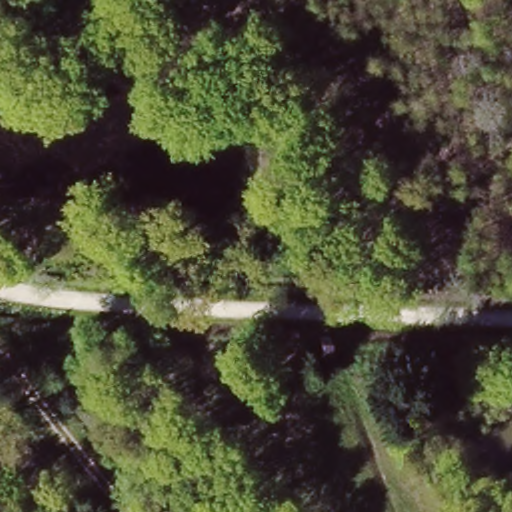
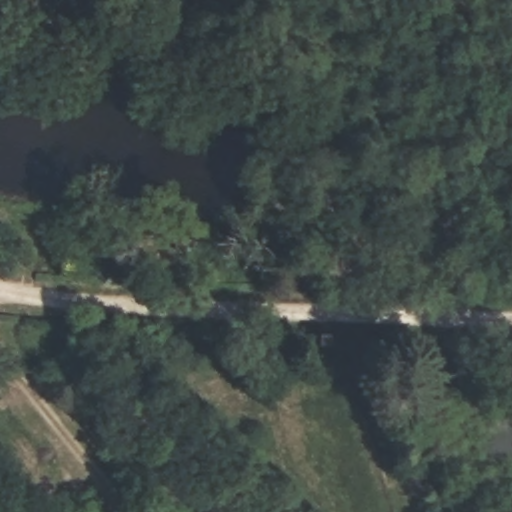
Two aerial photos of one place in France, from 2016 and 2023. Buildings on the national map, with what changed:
[]

